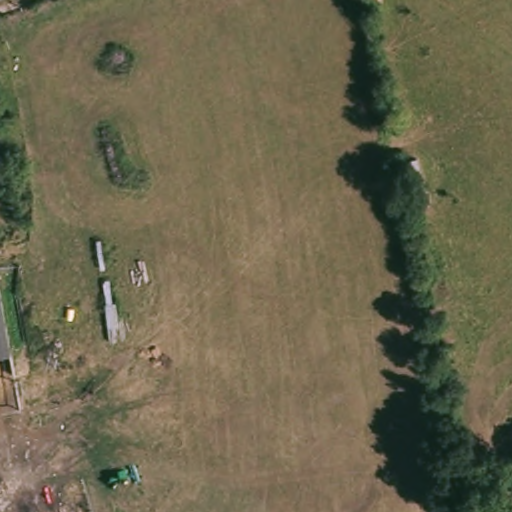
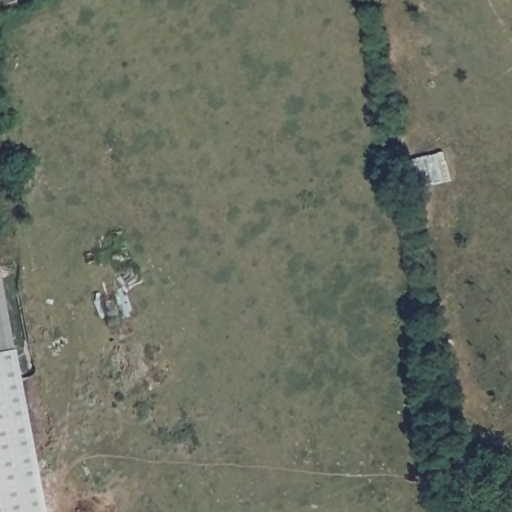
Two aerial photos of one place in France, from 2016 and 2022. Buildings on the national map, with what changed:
unchanged [(5,411),(0,389),(0,276),(24,408),(5,411)]
unchanged [(0,389),(5,411),(0,412),(0,389)]
new [(0,412),(5,411),(23,408),(42,512),(0,512),(0,412)]

